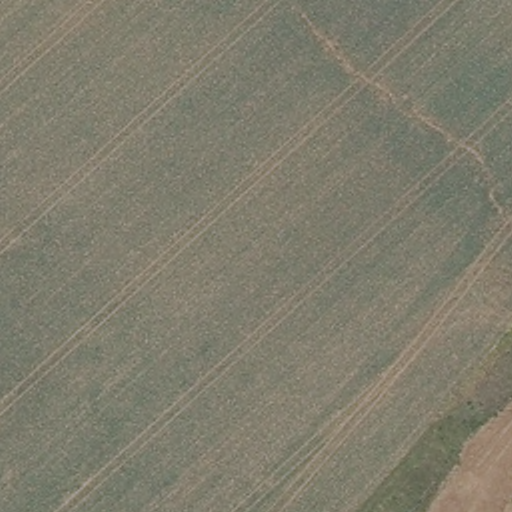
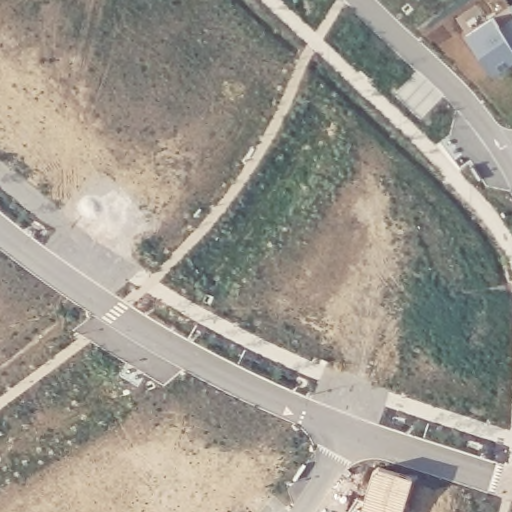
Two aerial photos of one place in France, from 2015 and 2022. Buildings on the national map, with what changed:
new [(511,5),(512,4),(512,7),(511,5)]
new [(493,73),(467,35),(494,17),(500,27),(512,19),(512,60),(493,73)]
new [(511,67),(508,63),(512,60),(512,66),(511,67)]
new [(402,512),(362,512),(374,473),(411,483),(402,512)]

